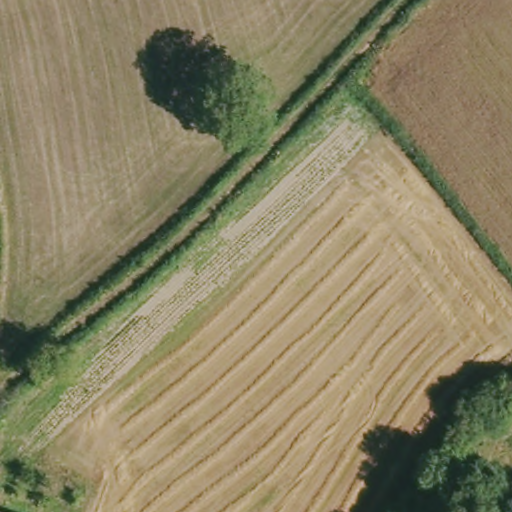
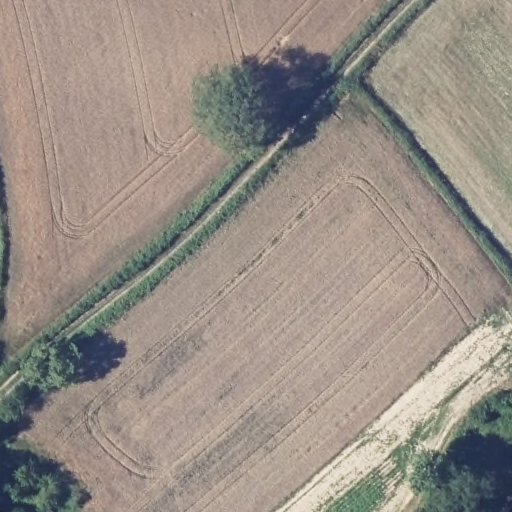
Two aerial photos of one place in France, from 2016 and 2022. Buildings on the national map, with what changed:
unchanged [(6,512),(0,512),(0,510),(6,512)]

